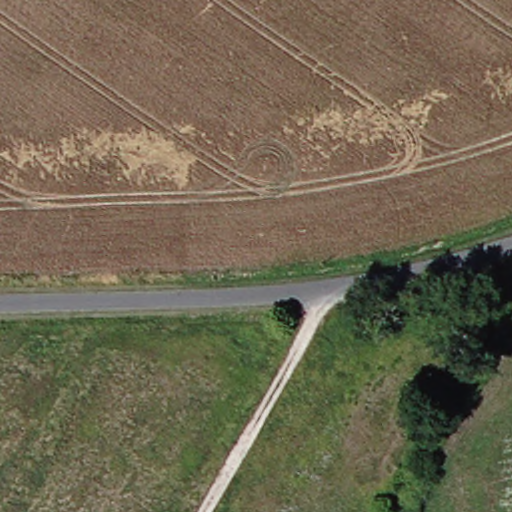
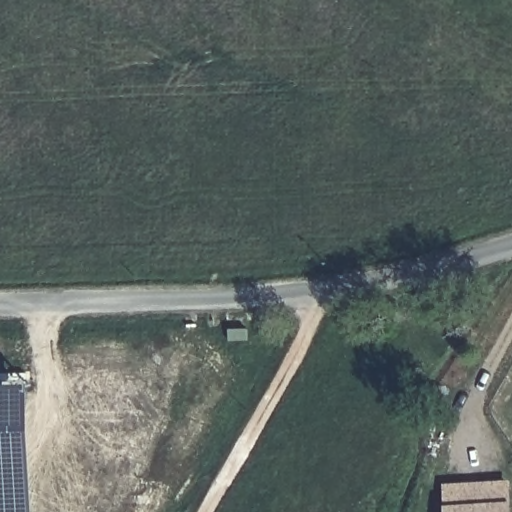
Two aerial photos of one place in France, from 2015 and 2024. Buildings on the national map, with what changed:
new [(0,512),(0,384),(31,383),(34,512),(0,512)]
new [(445,483),(473,482),(505,481),(507,496),(508,512),(447,512),(446,498),(445,483)]

